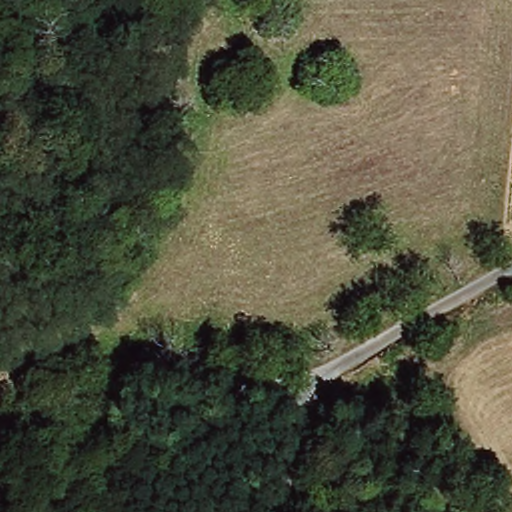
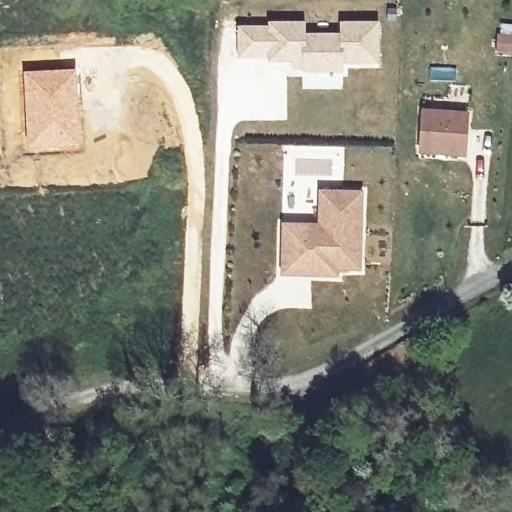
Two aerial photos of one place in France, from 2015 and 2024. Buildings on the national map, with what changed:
new [(273,62),(273,58),(241,58),(241,28),(272,28),(272,24),(308,24),(308,36),(344,35),(344,24),(381,24),(381,64),(345,63),(345,72),(307,72),(295,72),(296,62),(273,62)]
new [(76,68),(81,146),(25,150),(22,70),(76,68)]
new [(426,112),(472,115),(469,157),(423,154),(426,112)]
new [(287,226),(323,227),(324,193),(365,194),(363,271),(341,270),(341,277),(286,276),(286,251),(287,226)]

